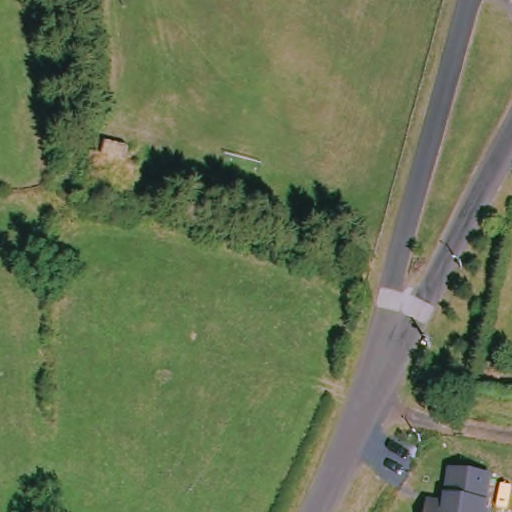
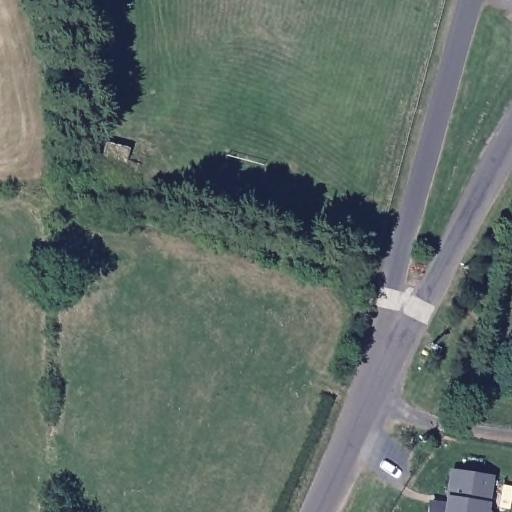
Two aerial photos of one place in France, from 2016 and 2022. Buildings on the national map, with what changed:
unchanged [(452,469),(491,476),(485,509),(488,512),(428,512),(430,501),(447,504),(452,469)]

